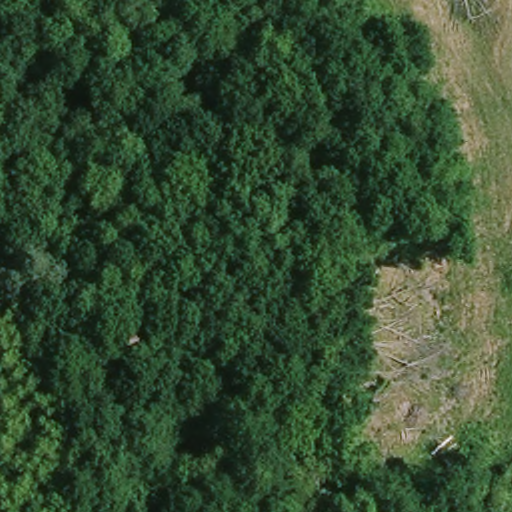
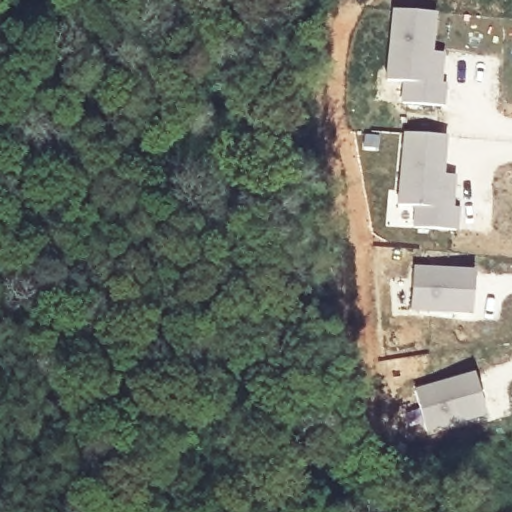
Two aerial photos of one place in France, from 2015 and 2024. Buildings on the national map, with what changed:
new [(434,8),(431,47),(444,49),(442,59),(442,80),(447,80),(446,101),(405,99),(406,78),(389,77),(394,6),(434,8)]
new [(444,135),(441,174),(454,175),(452,186),(452,206),(457,207),(456,228),(415,225),(416,204),(399,203),(404,132),(444,135)]
new [(416,267),(477,270),(475,311),(414,308),(416,267)]
new [(475,372),(486,411),(428,429),(417,390),(475,372)]

